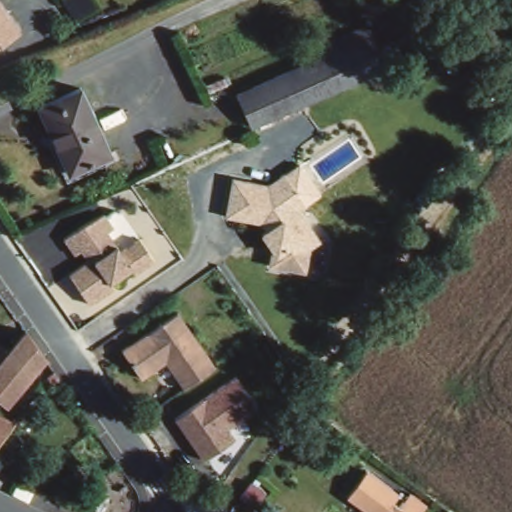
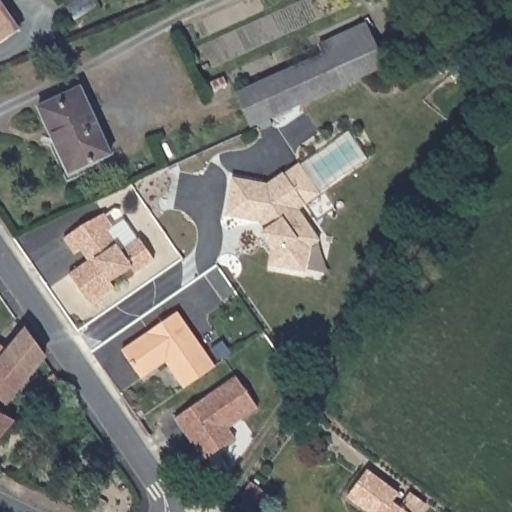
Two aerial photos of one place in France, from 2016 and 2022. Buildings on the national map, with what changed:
unchanged [(0,44),(0,5),(19,31),(0,44)]
unchanged [(317,42),(364,21),(382,67),(252,126),(235,91),(321,53),(317,42)]
unchanged [(80,89),(111,155),(69,174),(37,108),(80,89)]
unchanged [(224,179),(261,184),(278,173),(301,207),(296,214),(312,240),(302,247),(300,274),(262,271),(265,249),(247,224),(219,220),(224,179)]
unchanged [(79,260),(76,254),(66,259),(57,240),(100,216),(106,227),(102,230),(112,248),(135,233),(149,260),(82,302),(59,273),(79,260)]
unchanged [(172,312),(208,367),(177,388),(162,365),(136,381),(115,351),(172,312)]
unchanged [(45,356),(9,403),(0,396),(0,363),(22,333),(26,330),(45,356)]
unchanged [(57,374),(62,382),(56,387),(50,379),(57,374)]
unchanged [(237,376),(258,409),(227,428),(235,440),(203,460),(175,418),(237,376)]
unchanged [(0,439),(0,416),(14,423),(0,439)]
unchanged [(367,471),(401,496),(396,503),(407,512),(365,512),(346,498),(367,471)]

